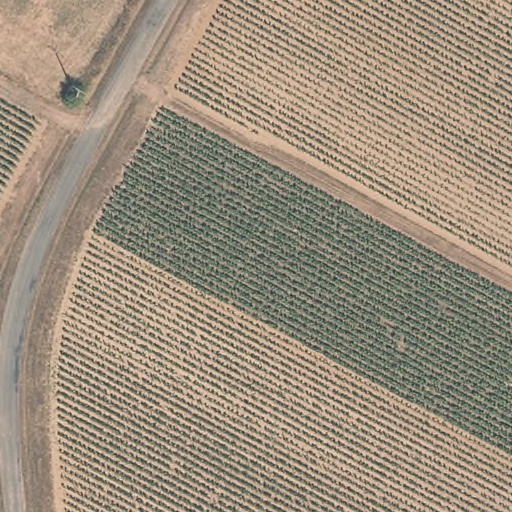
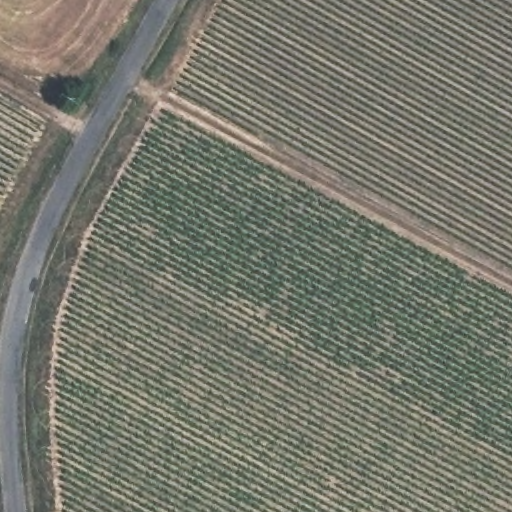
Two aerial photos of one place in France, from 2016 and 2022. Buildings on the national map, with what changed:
[]

